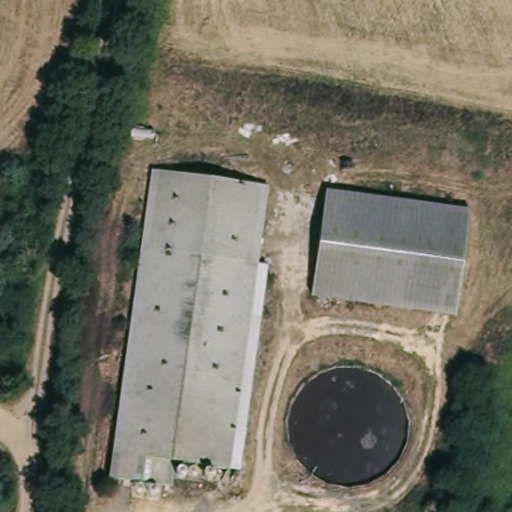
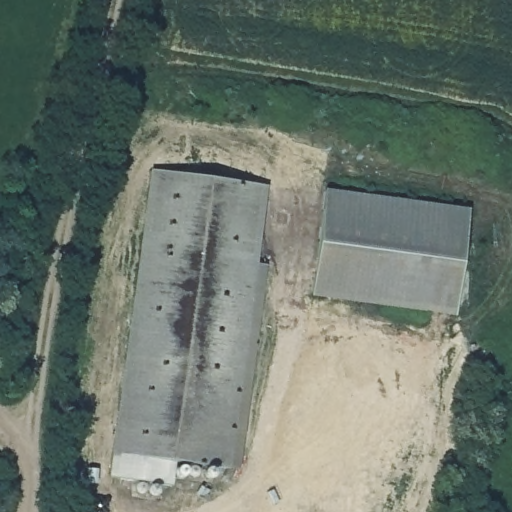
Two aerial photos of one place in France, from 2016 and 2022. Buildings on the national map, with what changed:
unchanged [(139,500),(141,485),(110,481),(140,248),(153,172),(274,188),(263,265),(231,475),(224,474),(222,488),(193,482),(195,470),(178,467),(176,491),(169,490),(167,504),(139,500)]
unchanged [(471,213),(457,314),(311,293),(325,191),(471,213)]
unchanged [(271,266),(270,272),(240,477),(231,475),(263,265),(271,266)]

